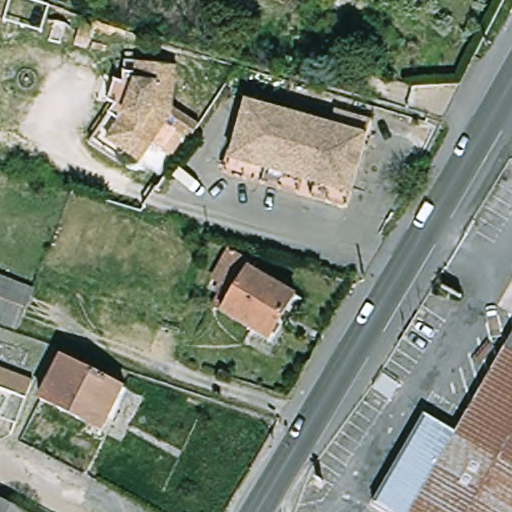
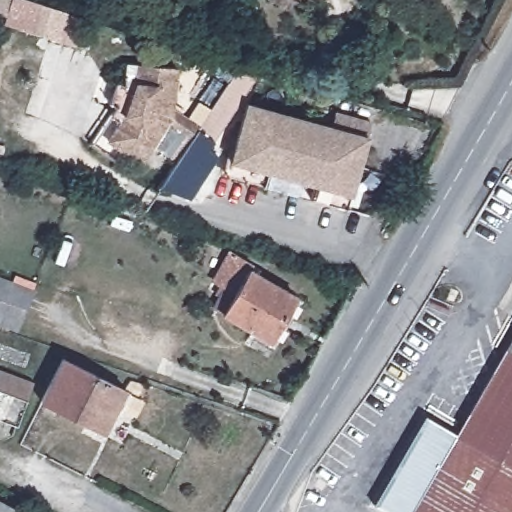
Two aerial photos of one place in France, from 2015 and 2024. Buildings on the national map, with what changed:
new [(88,50),(4,25),(6,16),(0,15),(0,0),(27,0),(97,22),(88,50)]
unchanged [(267,0),(292,0),(287,10),(267,0)]
unchanged [(195,121),(172,157),(159,148),(169,132),(164,129),(136,165),(106,142),(135,105),(141,67),(179,74),(173,106),(195,121)]
unchanged [(230,158),(248,100),(332,126),(337,112),(372,123),(345,209),(309,198),(297,194),(226,172),(230,158)]
unchanged [(282,346),(237,320),(240,315),(229,307),(242,286),(234,280),(244,264),(240,261),(243,257),(266,271),(263,276),(308,303),(282,346)]
unchanged [(0,321),(0,277),(40,291),(25,330),(0,321)]
unchanged [(373,502),(425,413),(460,434),(512,345),(512,512),(391,512),(373,502)]
unchanged [(72,360),(133,391),(112,433),(50,402),(72,360)]
unchanged [(2,368),(38,382),(22,425),(0,417),(0,372),(2,368)]
unchanged [(23,512),(0,512),(0,500),(23,512)]

